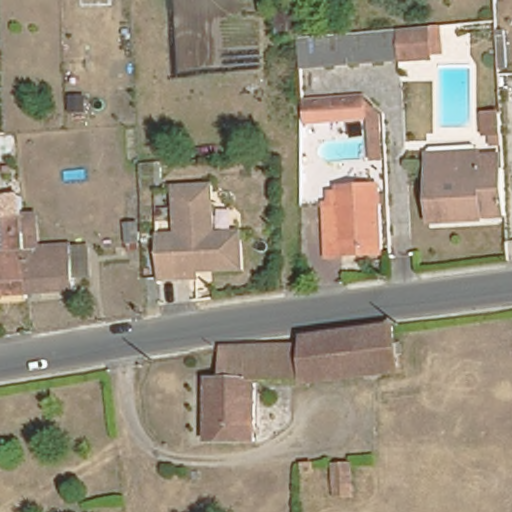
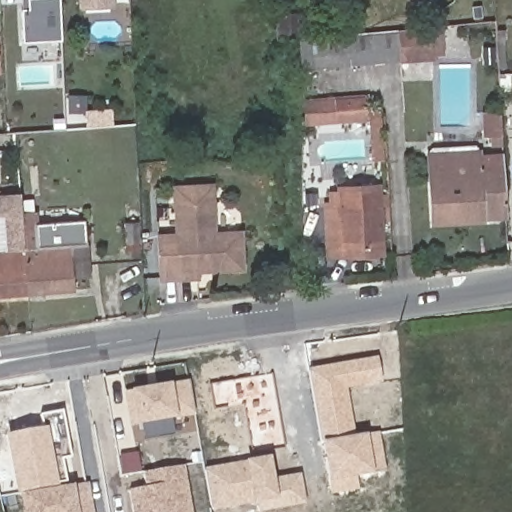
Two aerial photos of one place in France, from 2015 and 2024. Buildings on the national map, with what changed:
new [(60,0),(62,41),(45,42),(45,49),(26,50),(26,43),(23,43),(21,9),(21,0),(60,0)]
new [(78,9),(77,0),(113,0),(113,7),(78,9)]
unchanged [(315,38),(291,40),(290,16),(314,14),(315,38)]
unchanged [(418,30),(443,27),(447,27),(456,27),(459,58),(449,59),(419,60),(360,64),(314,67),(313,40),(358,36),(396,32),(418,30)]
unchanged [(504,31),(507,92),(500,92),(496,31),(504,31)]
unchanged [(383,112),(385,160),(369,160),(365,119),(365,117),(366,89),(383,112)]
unchanged [(364,92),(365,117),(365,119),(303,119),(301,92),(364,92)]
unchanged [(492,137),(491,127),(485,127),(484,108),(499,107),(500,127),(501,137),(492,137)]
unchanged [(482,222),(433,224),(429,166),(429,154),(479,151),(480,160),(501,159),(502,170),(505,216),(482,217),(482,222)]
unchanged [(175,207),(173,186),(211,185),(212,206),(213,227),(240,226),(243,271),(210,273),(209,269),(197,270),(198,281),(159,282),(158,272),(158,263),(178,262),(175,207)]
unchanged [(345,254),(326,255),(326,248),(323,211),(323,205),(331,205),(331,192),(382,189),(383,209),(384,239),(385,251),(345,254)]
unchanged [(5,215),(5,213),(4,196),(21,195),(22,211),(22,212),(23,219),(24,245),(27,290),(0,292),(0,215),(5,215)]
unchanged [(88,270),(72,271),(73,287),(27,290),(24,245),(23,219),(22,212),(22,211),(39,210),(41,244),(70,241),(85,240),(88,270)]
unchanged [(140,224),(141,254),(127,254),(126,225),(140,224)]
demolished [(221,346),(305,345),(304,383),(254,382),(253,443),(206,442),(207,379),(221,380),(221,352),(221,346)]
new [(354,437),(367,436),(378,432),(386,471),(374,474),(355,477),(359,489),(332,493),(330,483),(322,442),(309,370),(377,357),(382,382),(347,388),(354,437)]
new [(253,452),(244,403),(215,409),(210,383),(272,373),(286,447),(253,452)]
new [(177,419),(137,426),(131,427),(123,392),(133,391),(172,383),(189,380),(195,416),(177,419)]
new [(62,411),(71,457),(62,459),(66,482),(58,483),(47,430),(23,433),(23,431),(42,426),(39,415),(62,411)]
new [(47,430),(58,487),(90,484),(93,512),(20,512),(7,436),(47,430)]
new [(306,504),(261,512),(258,512),(257,505),(253,506),(212,512),(204,467),(244,461),(270,457),(274,480),(300,473),(306,504)]
demolished [(365,469),(357,469),(357,462),(365,461),(365,469)]
demolished [(350,462),(352,493),(335,494),(333,462),(350,462)]
new [(190,512),(136,512),(133,491),(148,488),(145,473),(183,467),(190,512)]

